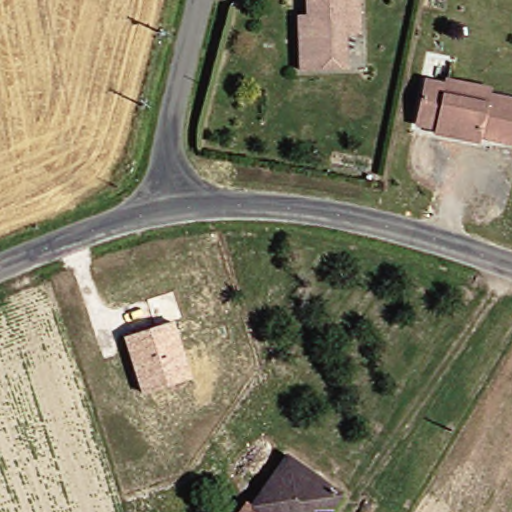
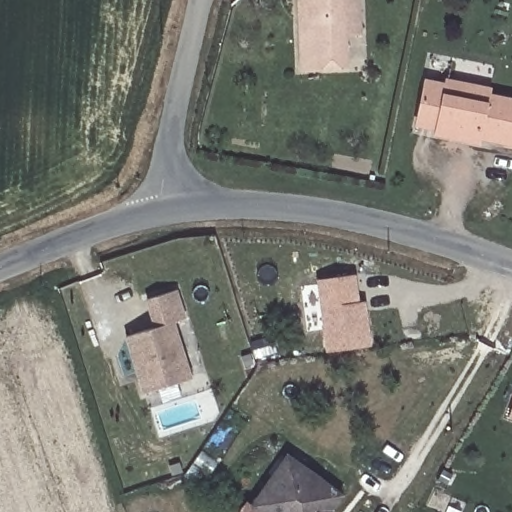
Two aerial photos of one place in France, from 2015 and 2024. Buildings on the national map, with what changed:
unchanged [(310,12),(309,0),(366,0),(368,33),(350,34),(352,66),(303,68),(302,26),(302,13),(310,12)]
unchanged [(486,138),(485,143),(442,133),(443,128),(424,124),(433,81),(453,85),(454,79),(494,88),(493,95),(512,99),(512,144),(486,138)]
new [(359,300),(366,300),(371,345),(326,353),(316,280),(356,274),(359,300)]
new [(186,318),(174,322),(154,328),(144,300),(178,289),(186,318)]
unchanged [(192,379),(140,394),(124,338),(174,322),(192,379)]
new [(511,415),(512,412),(512,415),(511,415)]
unchanged [(263,500),(300,452),(353,492),(337,512),(244,512),(258,496),(263,500)]

